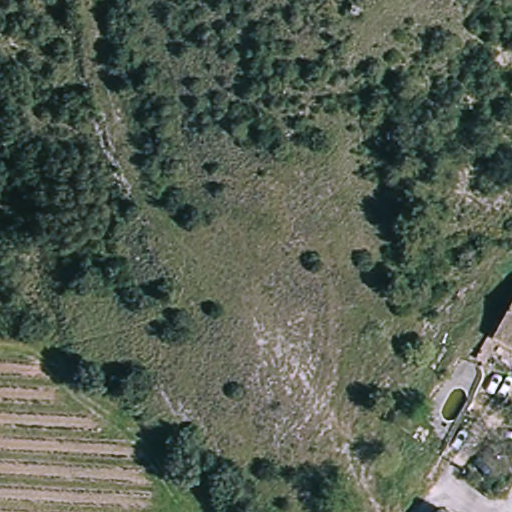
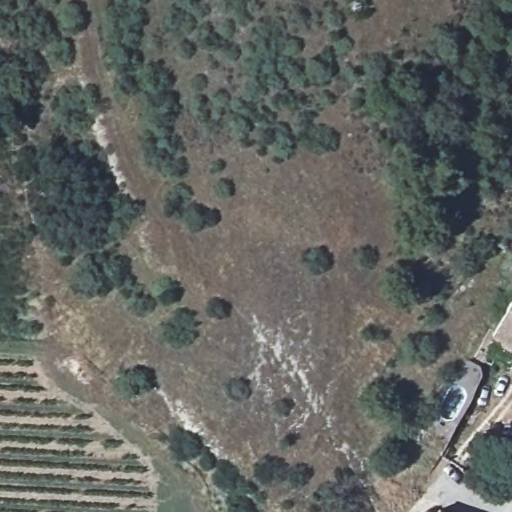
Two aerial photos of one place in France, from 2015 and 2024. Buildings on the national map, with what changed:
unchanged [(495,326),(512,300),(512,335),(495,326)]
unchanged [(499,464),(505,448),(512,450),(512,468),(499,464)]
unchanged [(441,512),(436,512),(437,510),(441,512)]

